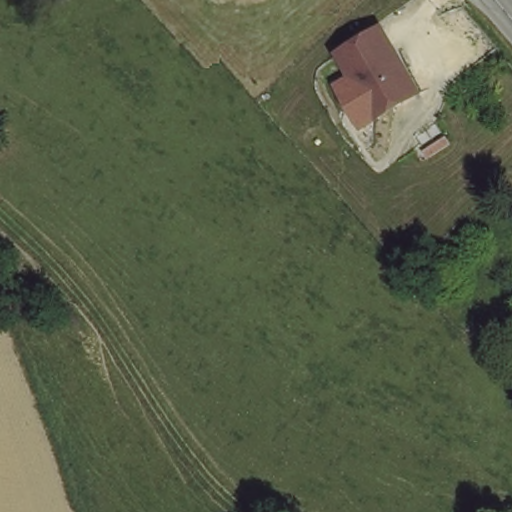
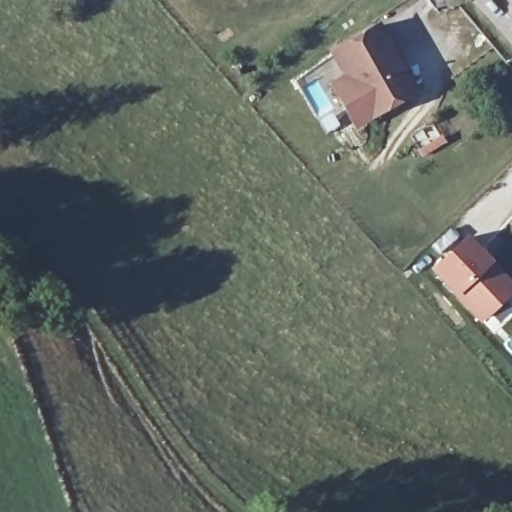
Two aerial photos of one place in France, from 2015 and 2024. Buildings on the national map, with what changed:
unchanged [(380,21),(415,87),(372,111),(335,45),(380,21)]
new [(492,262),(512,284),(512,291),(480,322),(454,295),(430,268),(465,236),(492,262)]

